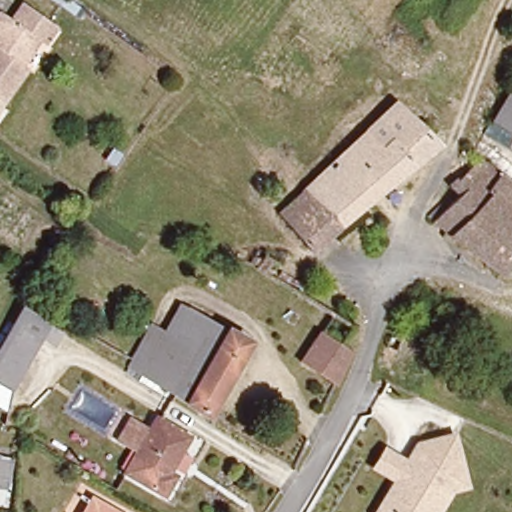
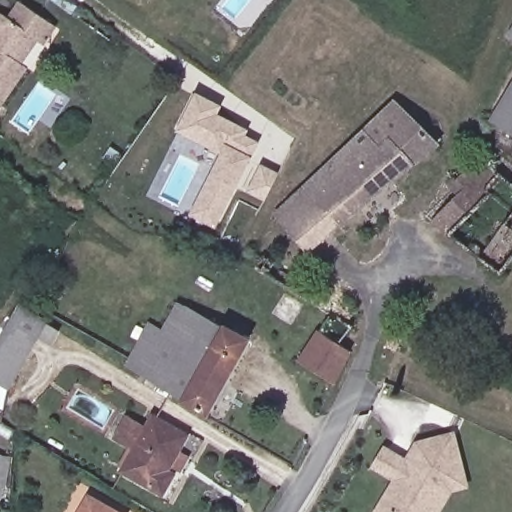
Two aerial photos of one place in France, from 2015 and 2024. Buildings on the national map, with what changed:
unchanged [(9,15),(21,0),(23,0),(56,26),(43,43),(37,39),(19,61),(24,66),(0,95),(0,12),(3,9),(9,15)]
new [(29,69),(0,108),(0,95),(24,66),(29,69)]
new [(218,225),(194,213),(192,217),(189,215),(219,155),(175,132),(193,97),(204,102),(201,108),(260,139),(218,225)]
unchanged [(512,100),(512,132),(498,121),(512,100)]
unchanged [(311,245),(281,211),(398,101),(433,140),(311,245)]
unchanged [(436,223),(460,194),(455,188),(487,150),(512,176),(512,257),(496,276),(436,223)]
new [(246,192),(260,164),(279,172),(264,201),(246,192)]
demolished [(265,265),(250,255),(261,239),(275,247),(269,257),(265,265)]
unchanged [(121,366),(130,351),(138,356),(153,327),(162,332),(181,300),(248,344),(204,418),(139,377),(121,366)]
unchanged [(9,379),(0,373),(0,332),(17,304),(44,324),(9,379)]
unchanged [(333,380),(297,355),(315,326),(353,351),(349,356),(333,380)]
unchanged [(406,355),(392,347),(399,337),(413,345),(406,355)]
unchanged [(164,468),(172,475),(159,495),(116,466),(149,413),(184,437),(164,468)]
unchanged [(384,446),(408,458),(417,444),(456,432),(471,490),(454,495),(444,512),(373,512),(391,481),(372,470),(384,446)]
unchanged [(0,480),(0,450),(3,450),(0,480)]
unchanged [(88,496),(115,512),(79,512),(88,496)]

